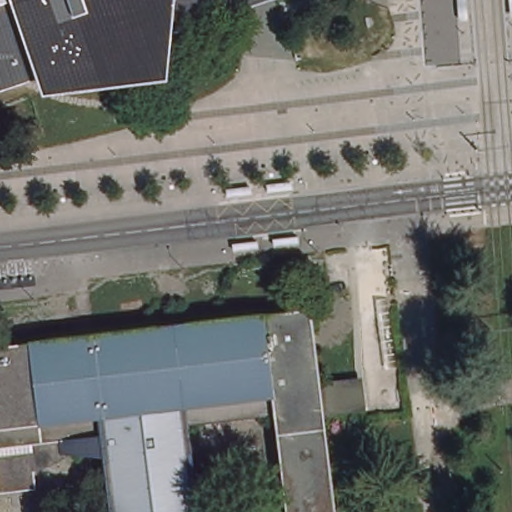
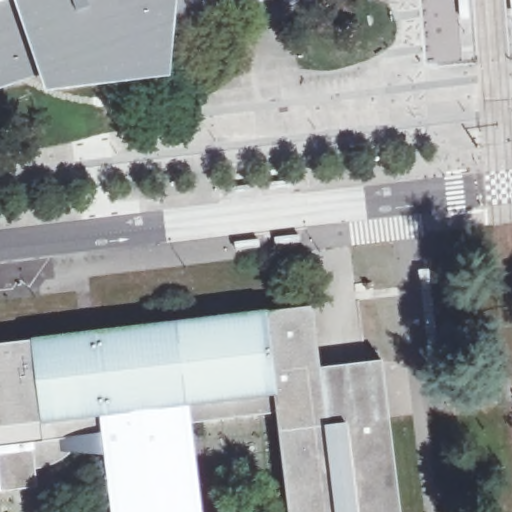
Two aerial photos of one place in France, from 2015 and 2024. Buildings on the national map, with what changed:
unchanged [(0,0),(211,0),(142,24),(32,62),(0,72),(0,0)]
unchanged [(145,66),(39,80),(32,62),(142,24),(145,66)]
unchanged [(90,332),(305,306),(314,379),(317,408),(317,410),(330,512),(281,512),(267,412),(178,422),(189,512),(106,512),(96,432),(0,443),(0,343),(67,335),(90,332)]
new [(317,410),(317,408),(314,379),(313,370),(384,362),(401,512),(330,512),(317,410)]

